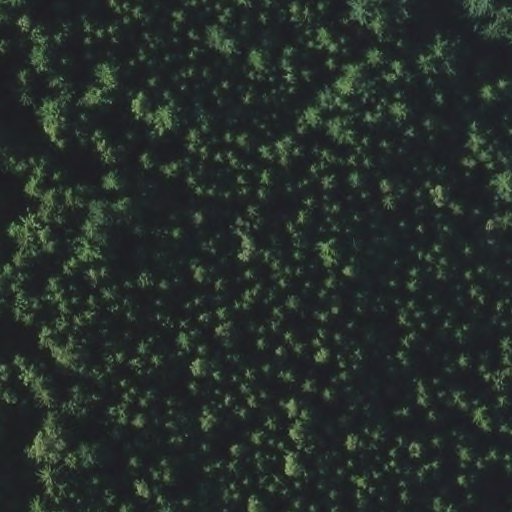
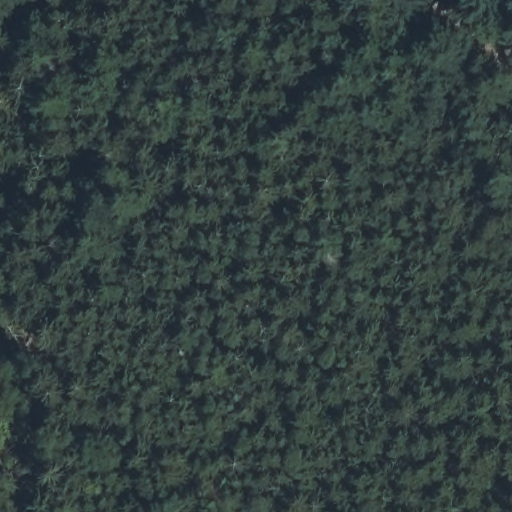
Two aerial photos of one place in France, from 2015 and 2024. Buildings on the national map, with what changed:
[]

